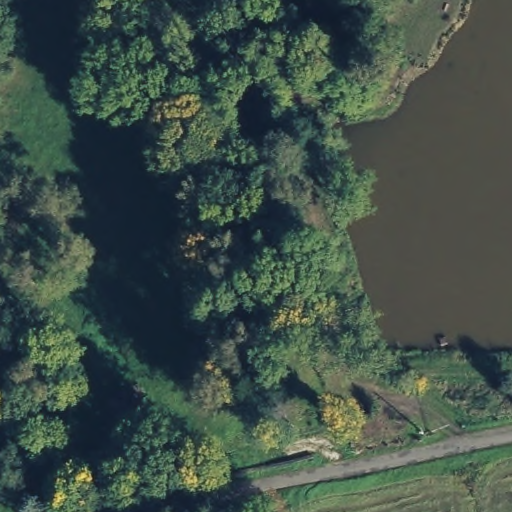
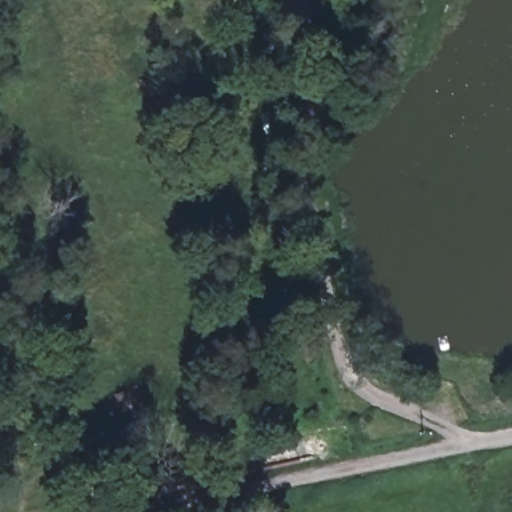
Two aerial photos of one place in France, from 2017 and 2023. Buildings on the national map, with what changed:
unchanged [(362,179),(360,166),(372,163),(376,176),(367,178),(362,179)]

